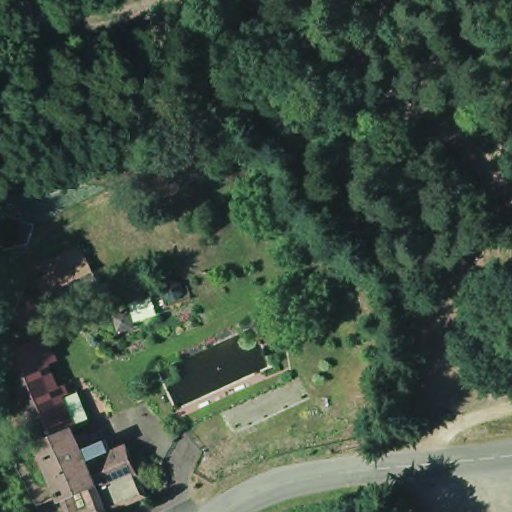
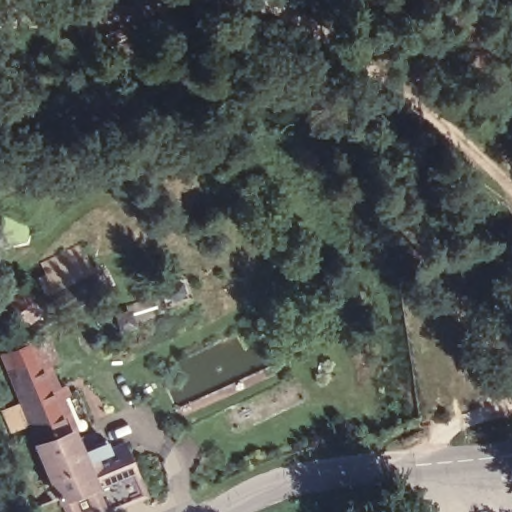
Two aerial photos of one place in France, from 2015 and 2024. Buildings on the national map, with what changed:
unchanged [(100,252),(53,275),(47,256),(91,234),(100,252)]
unchanged [(191,257),(194,271),(180,276),(177,264),(191,257)]
unchanged [(25,298),(9,308),(0,296),(0,291),(11,283),(25,298)]
unchanged [(6,361),(43,349),(69,419),(83,416),(96,453),(127,442),(137,469),(100,484),(105,508),(96,512),(66,512),(35,440),(6,361)]

